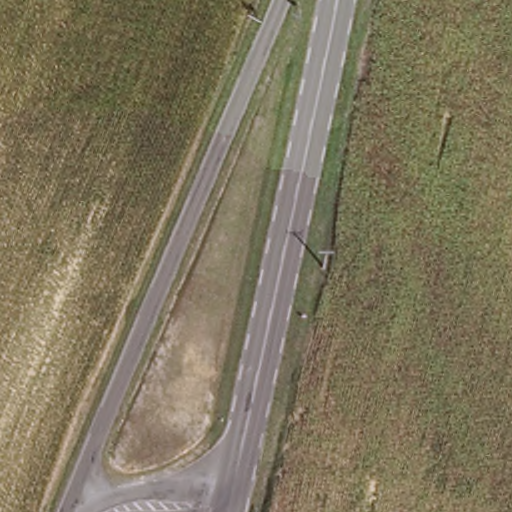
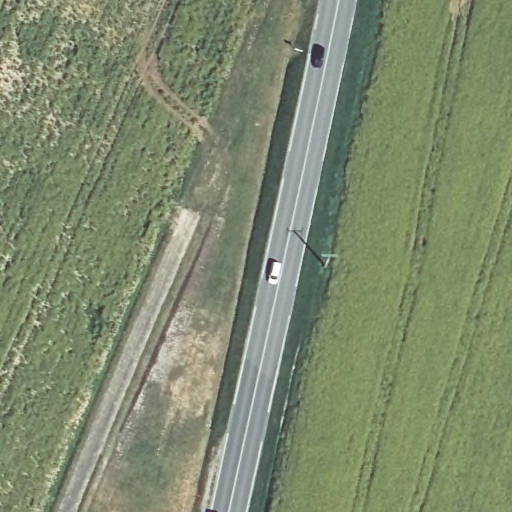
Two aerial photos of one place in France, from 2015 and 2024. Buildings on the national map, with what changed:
[]

